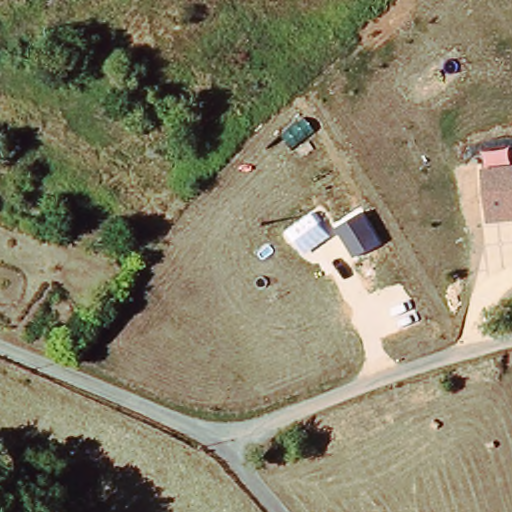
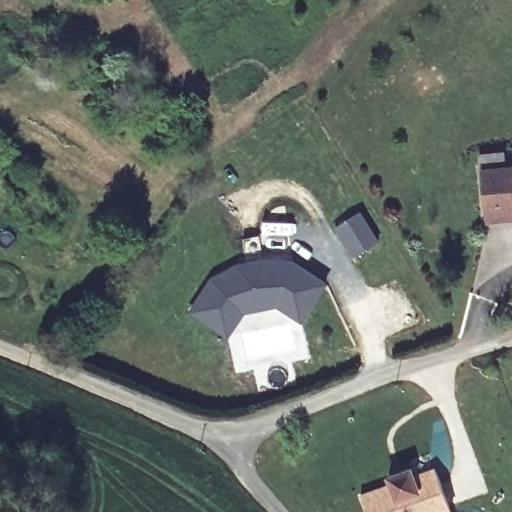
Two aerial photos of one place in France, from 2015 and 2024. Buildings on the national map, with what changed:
unchanged [(481,165),(512,162),(512,221),(487,224),(481,165)]
new [(358,218),(376,248),(352,263),(334,233),(358,218)]
new [(219,337),(189,317),(211,283),(236,271),(263,265),(291,267),(324,289),(304,319),(299,326),(276,311),(242,317),(226,342),(219,337)]
new [(387,476),(409,468),(411,477),(433,470),(447,512),(364,512),(358,495),(389,484),(387,476)]

